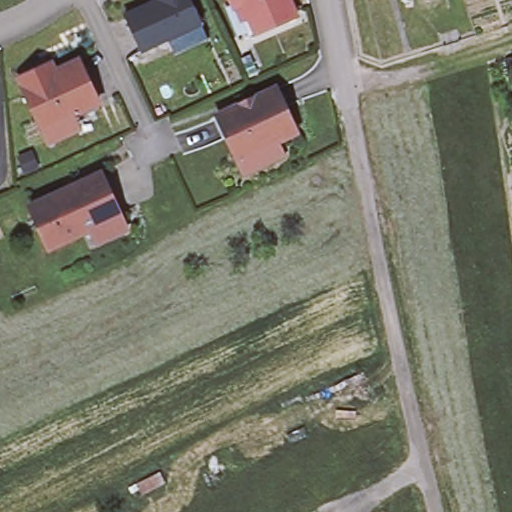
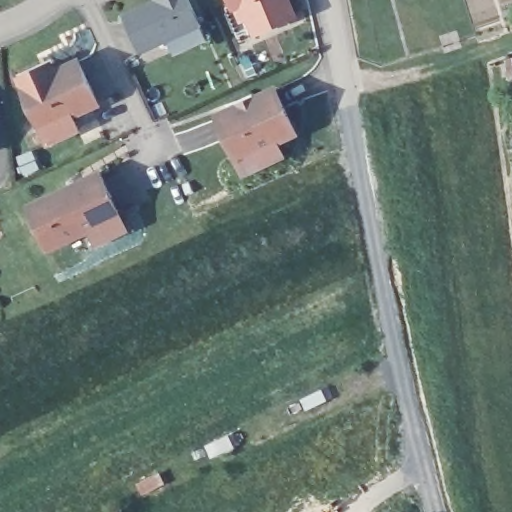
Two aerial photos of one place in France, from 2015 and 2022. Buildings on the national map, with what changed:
unchanged [(157,0),(189,0),(199,25),(141,50),(125,15),(158,1),(157,0)]
unchanged [(233,8),(229,0),(287,0),(294,16),(256,33),(248,16),(239,20),(233,8)]
unchanged [(48,148),(41,134),(18,85),(42,75),(50,70),(54,79),(77,67),(96,109),(69,121),(76,135),(48,148)]
unchanged [(244,169),(238,156),(227,132),(229,131),(219,111),(241,101),(242,104),(253,99),(252,96),(274,85),(296,129),(277,137),(283,150),(244,169)]
unchanged [(96,244),(89,230),(48,249),(28,209),(99,175),(118,216),(124,230),(96,244)]

